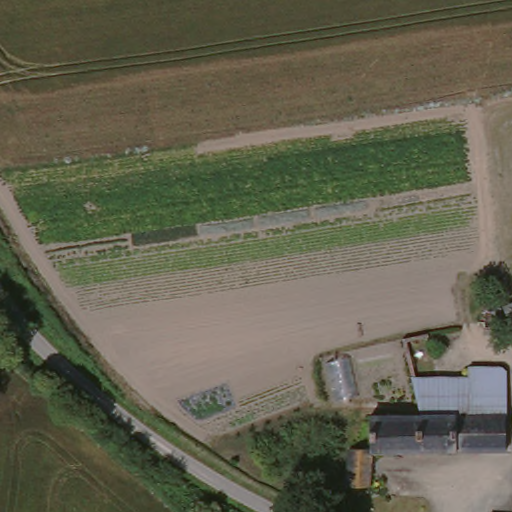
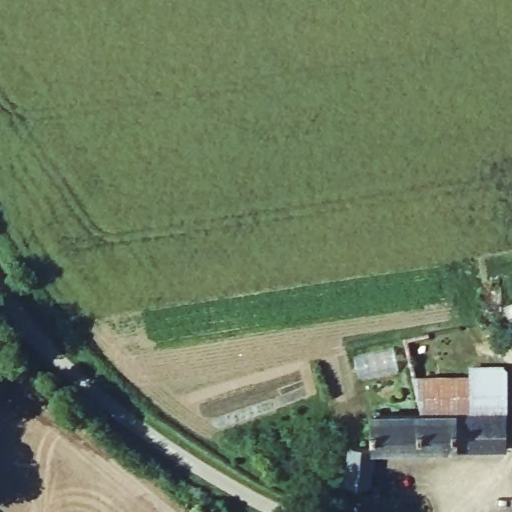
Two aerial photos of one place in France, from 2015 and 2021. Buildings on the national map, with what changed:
unchanged [(492,309),(512,302),(512,342),(505,345),(492,309)]
unchanged [(439,392),(471,392),(471,373),(506,373),(507,455),(373,460),(369,490),(339,490),(343,451),(352,450),(366,449),(368,449),(370,420),(414,418),(414,416),(401,333),(407,331),(426,328),(439,392)]
unchanged [(369,490),(376,491),(374,512),(338,512),(339,490),(369,490)]

